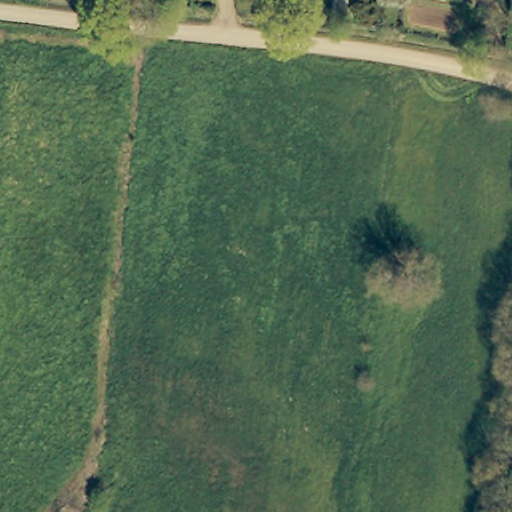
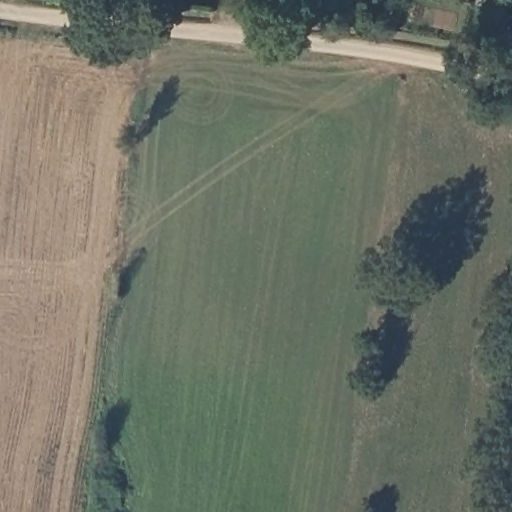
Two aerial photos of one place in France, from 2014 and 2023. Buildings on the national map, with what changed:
unchanged [(254,0),(275,0),(282,0),(281,14),(253,12),(254,0)]

